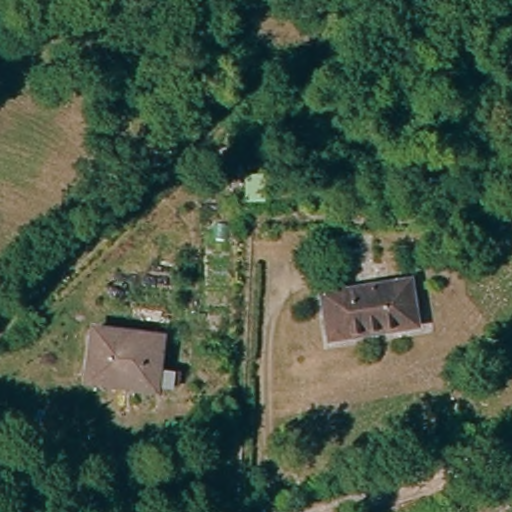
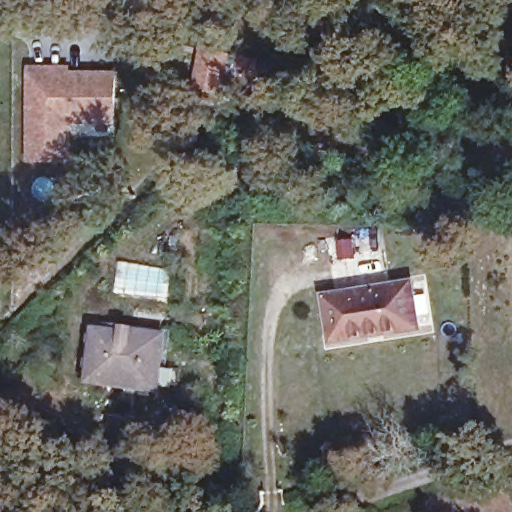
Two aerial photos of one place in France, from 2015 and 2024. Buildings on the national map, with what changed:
new [(200,46),(224,51),(215,90),(191,86),(200,46)]
new [(66,68),(66,73),(89,73),(112,73),(112,120),(67,120),(67,159),(29,159),(29,68),(66,68)]
unchanged [(409,286),(415,333),(332,345),(325,297),(409,286)]
unchanged [(159,339),(152,393),(125,389),(126,380),(88,377),(94,332),(159,339)]

